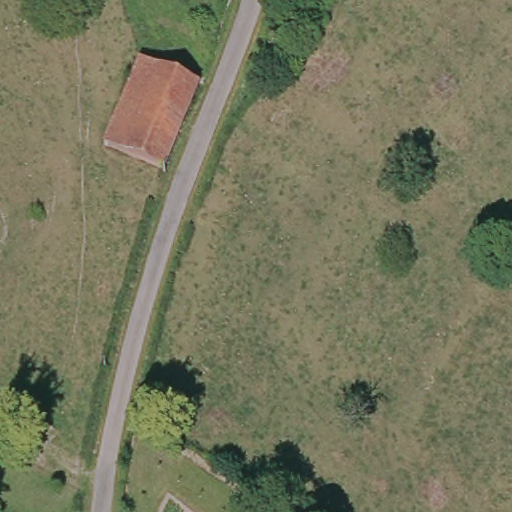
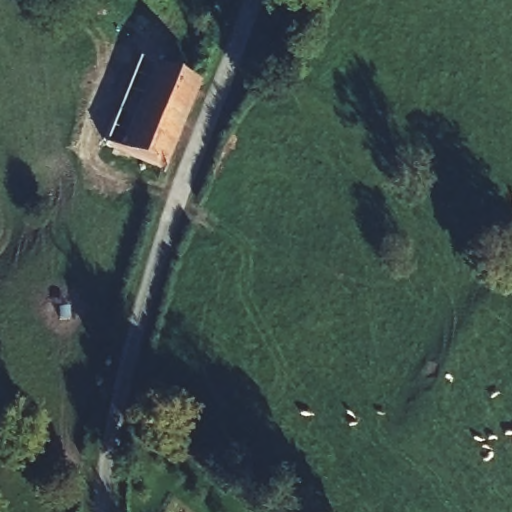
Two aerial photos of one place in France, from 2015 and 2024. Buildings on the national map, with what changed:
unchanged [(161,172),(106,154),(134,67),(190,86),(161,172)]

